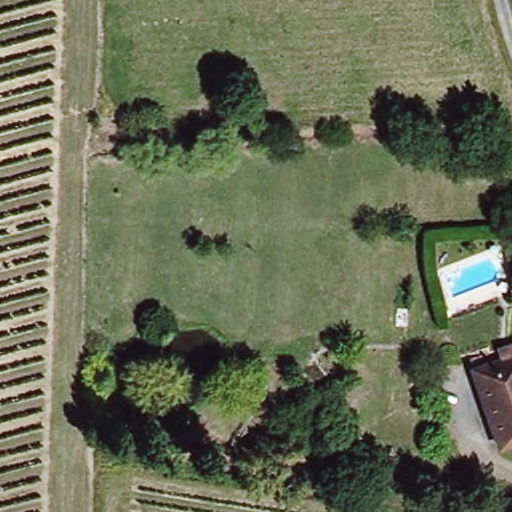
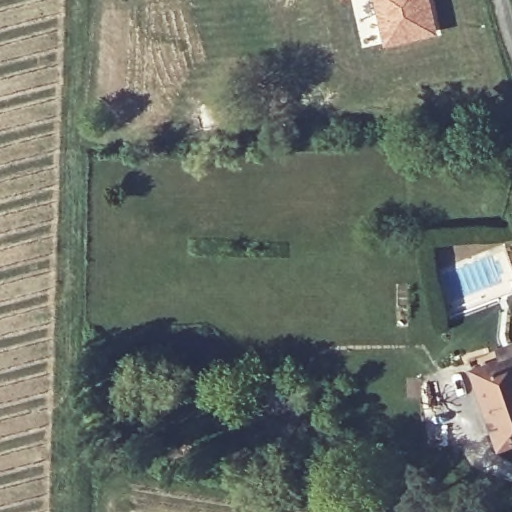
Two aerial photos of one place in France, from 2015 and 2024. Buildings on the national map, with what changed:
new [(384,47),(371,0),(432,0),(440,34),(384,47)]
unchanged [(471,363),(512,349),(512,437),(498,442),(471,363)]

